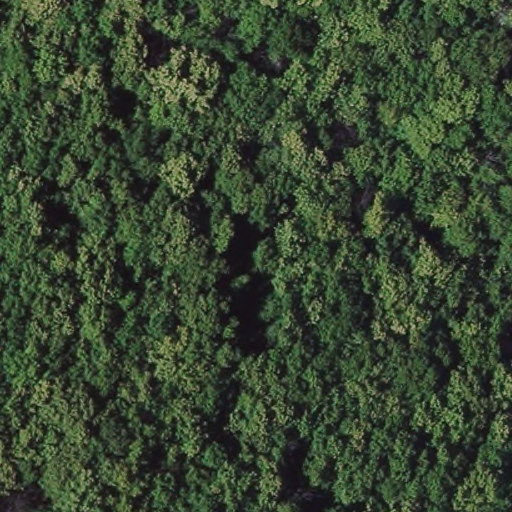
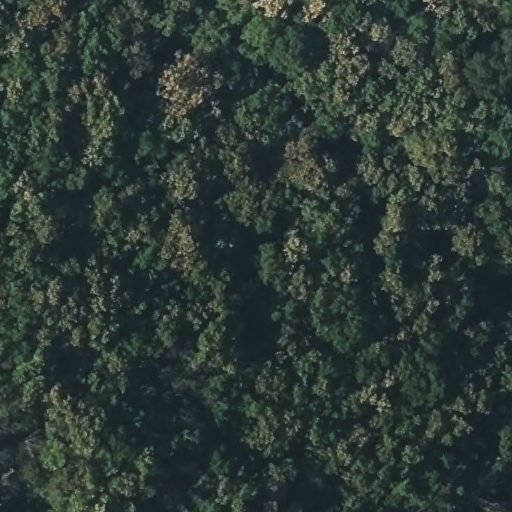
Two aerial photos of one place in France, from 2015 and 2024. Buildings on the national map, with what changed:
[]

